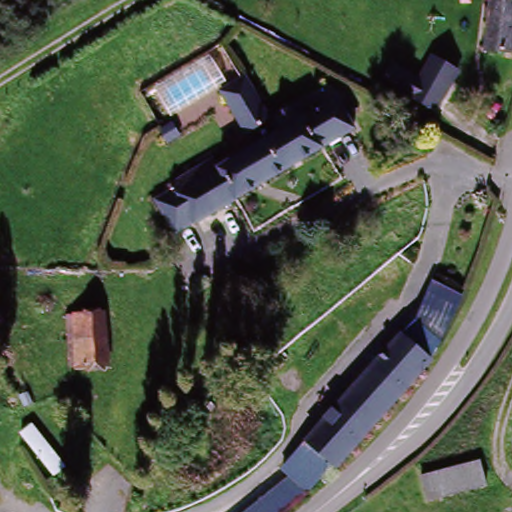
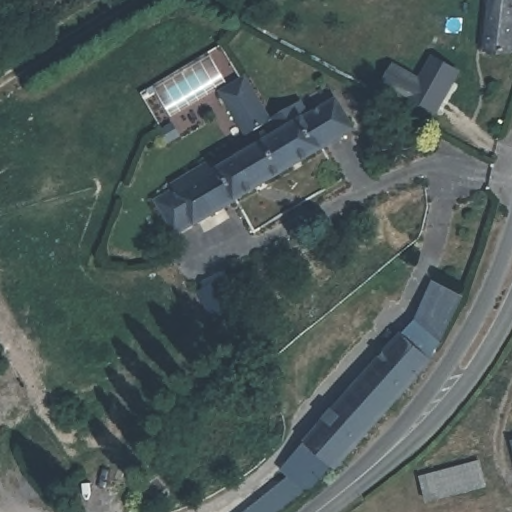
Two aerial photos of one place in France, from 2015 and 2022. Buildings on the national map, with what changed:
unchanged [(484,0),(512,0),(512,52),(508,51),(507,54),(480,51),(484,0)]
unchanged [(460,67),(436,119),(412,106),(412,104),(380,89),(392,57),(420,71),(430,52),(460,67)]
unchanged [(174,193),(216,165),(221,175),(256,152),(221,99),(240,86),(266,126),(297,106),(307,121),(333,105),(351,134),(198,232),(185,240),(167,212),(181,204),(174,193)]
unchanged [(401,335),(435,285),(462,300),(427,357),(401,335)]
demolished [(96,311),(97,360),(67,363),(64,311),(96,311)]
unchanged [(308,442),(401,335),(427,357),(332,463),(308,442)]
unchanged [(512,439),(512,445),(511,439),(512,439)]
unchanged [(305,487),(293,475),(286,467),(308,442),(332,463),(305,487)]
unchanged [(421,501),(415,480),(481,462),(486,485),(421,501)]
unchanged [(305,487),(276,512),(250,512),(293,475),(305,487)]

